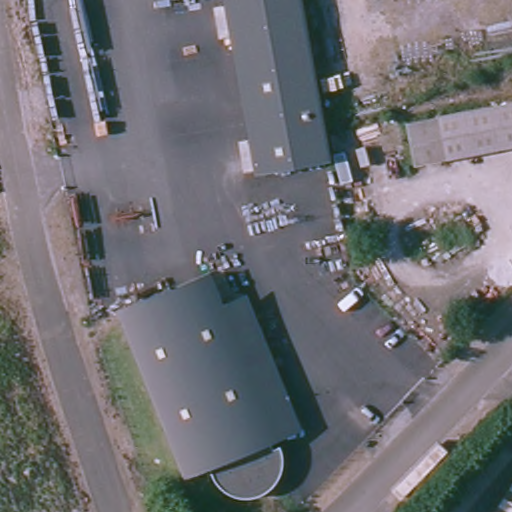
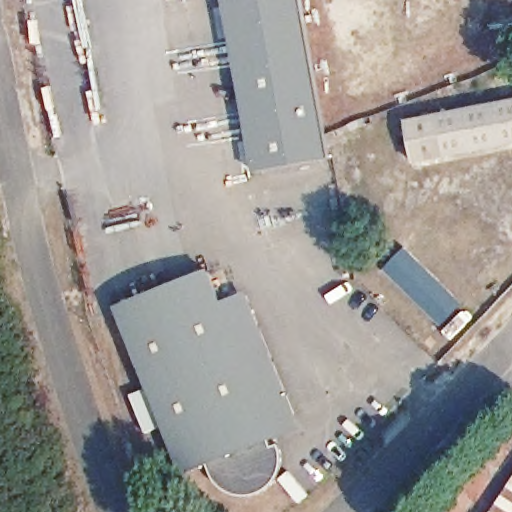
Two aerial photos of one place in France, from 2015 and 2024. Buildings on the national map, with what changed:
unchanged [(332,158),(257,171),(244,94),(227,0),(305,0),(319,80),(332,158)]
unchanged [(512,110),(512,151),(417,167),(410,127),(512,110)]
new [(464,303),(442,326),(386,271),(408,248),(464,303)]
unchanged [(216,282),(229,316),(234,328),(280,447),(273,450),(277,458),(284,455),(286,461),(286,466),(286,471),(285,477),(283,483),(281,488),(277,492),(274,495),(270,499),(265,502),(260,504),(253,505),(247,505),(240,504),(234,502),(228,499),(224,495),(220,491),(217,486),(215,482),(212,474),(187,483),(135,348),(123,318),(216,282)]
unchanged [(254,306),(261,323),(305,437),(280,447),(234,328),(229,316),(254,306)]
unchanged [(512,476),(512,512),(489,512),(512,476)]

